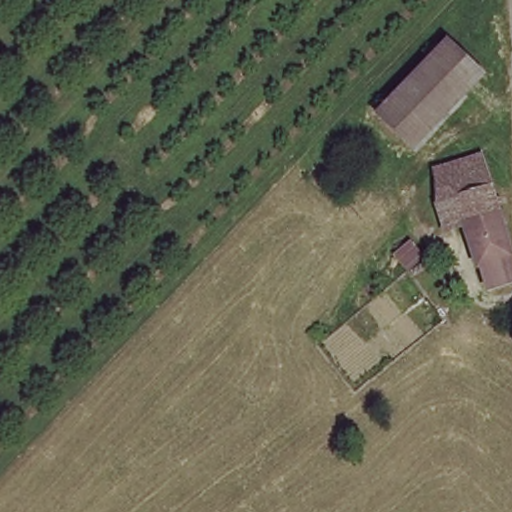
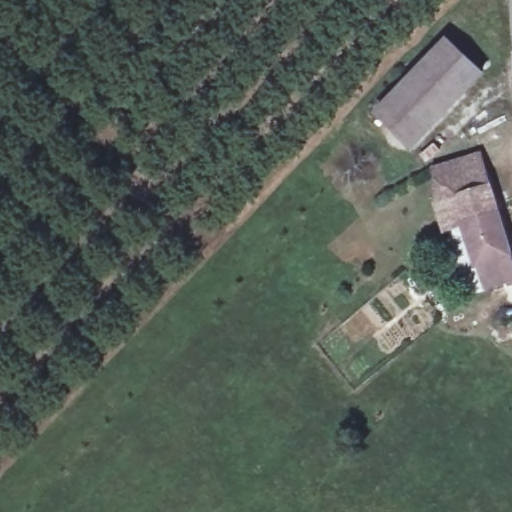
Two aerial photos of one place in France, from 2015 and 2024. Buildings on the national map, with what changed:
unchanged [(479,76),(412,145),(376,109),(441,40),(479,76)]
unchanged [(512,273),(490,288),(472,224),(446,230),(437,205),(442,185),(435,169),(455,164),(482,156),(487,174),(506,236),(510,264),(512,273)]

